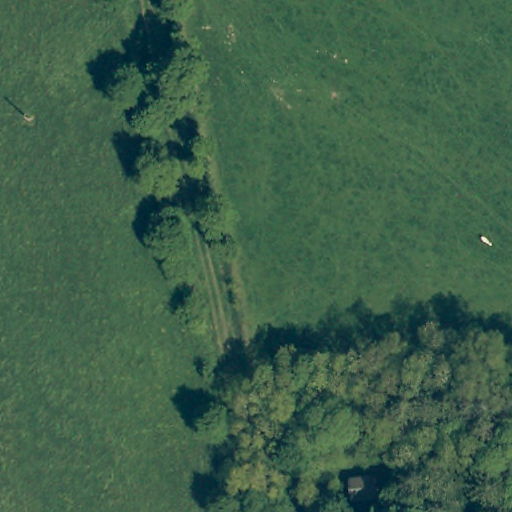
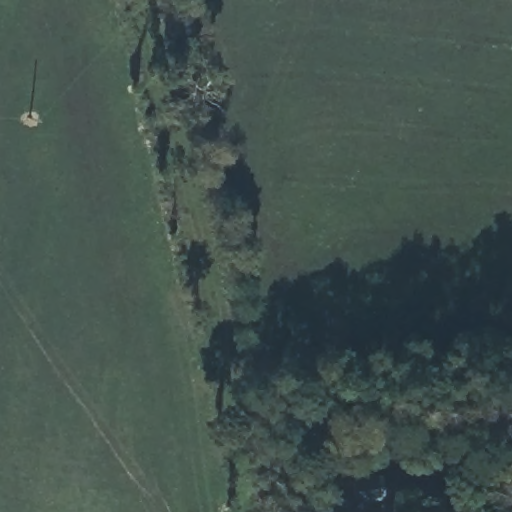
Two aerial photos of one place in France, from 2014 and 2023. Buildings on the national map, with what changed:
unchanged [(376,474),(377,494),(351,496),(350,475),(376,474)]

